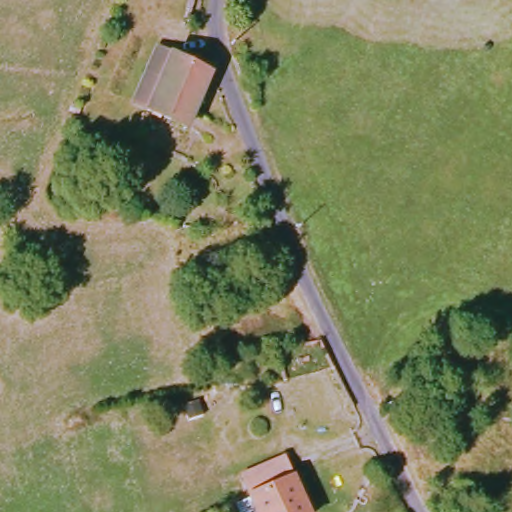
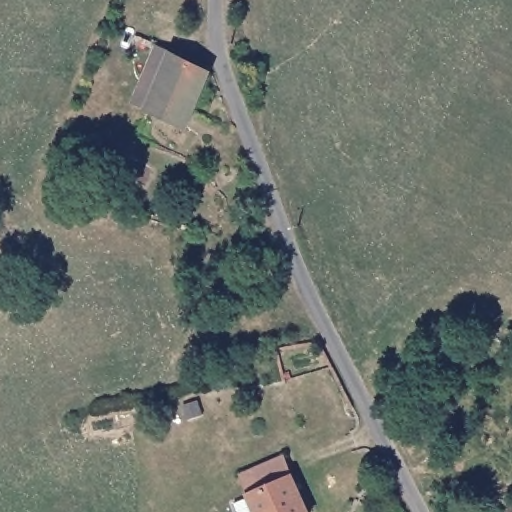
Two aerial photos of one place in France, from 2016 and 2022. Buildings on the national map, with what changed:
unchanged [(196,66),(174,119),(135,103),(158,50),(160,49),(196,66)]
unchanged [(251,496),(242,476),(283,455),(292,475),(309,512),(239,512),(235,504),(251,496)]

